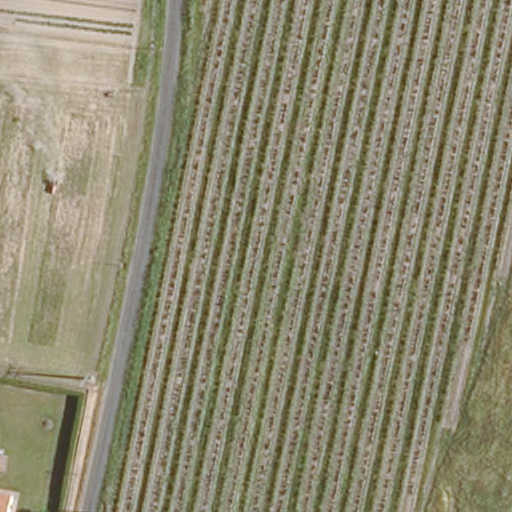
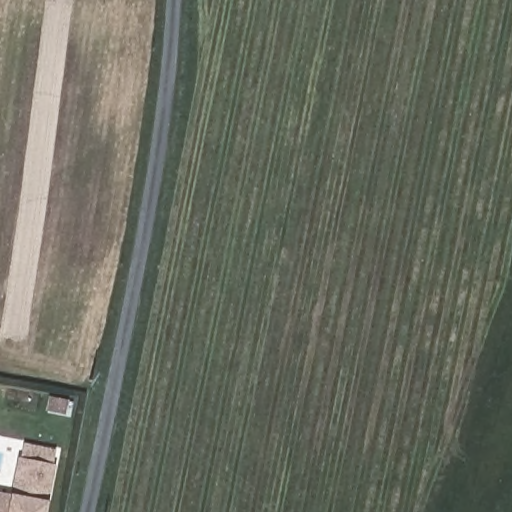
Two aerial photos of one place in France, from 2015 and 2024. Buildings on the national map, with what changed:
new [(19,493),(13,492),(18,457),(21,458),(24,443),(56,449),(54,465),(56,465),(49,502),(47,512),(15,512),(19,493)]
unchanged [(0,490),(19,493),(15,512),(0,512),(0,490)]

